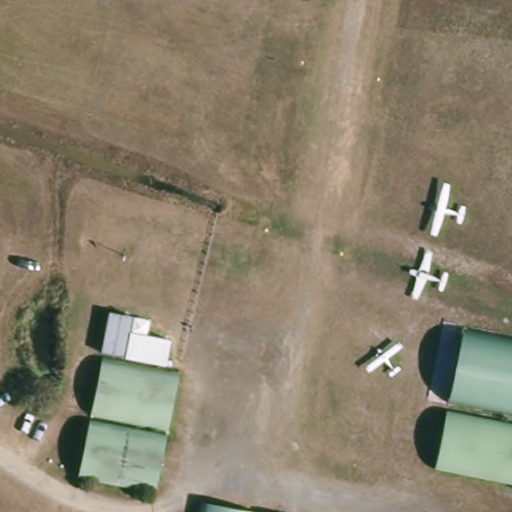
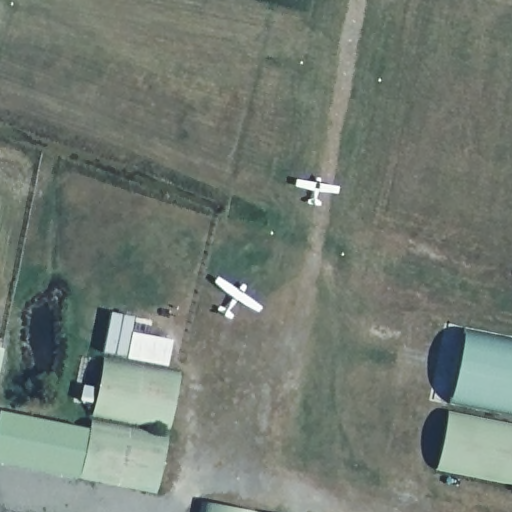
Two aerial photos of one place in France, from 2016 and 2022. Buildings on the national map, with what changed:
unchanged [(512,416),(447,403),(463,329),(512,339),(512,416)]
unchanged [(174,341),(167,368),(127,360),(134,331),(174,341)]
unchanged [(173,431),(96,415),(107,356),(127,360),(167,368),(185,372),(173,431)]
unchanged [(512,423),(512,485),(435,469),(447,410),(512,423)]
new [(76,477),(0,462),(0,411),(86,428),(76,477)]
unchanged [(161,493),(82,478),(95,419),(172,434),(161,493)]
unchanged [(203,512),(206,501),(256,512),(203,512)]

